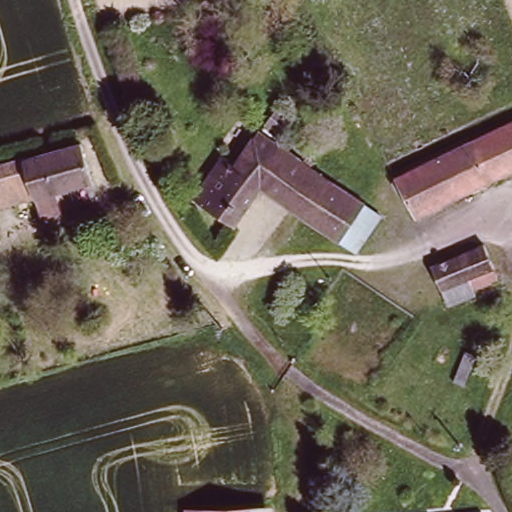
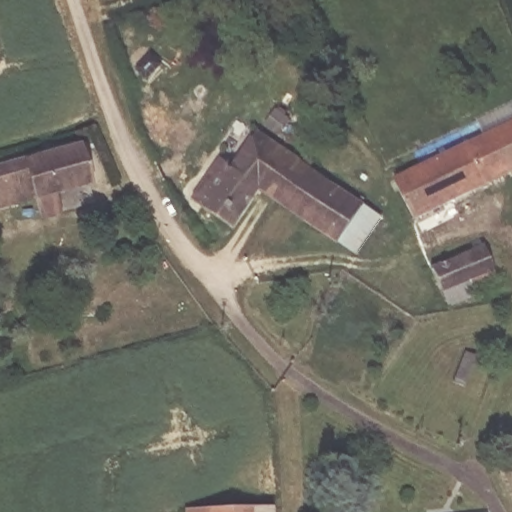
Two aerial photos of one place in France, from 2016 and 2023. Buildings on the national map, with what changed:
unchanged [(414,222),(391,176),(512,119),(512,174),(414,222)]
unchanged [(262,180),(243,209),(202,185),(220,154),(235,162),(255,132),(281,149),(262,180)]
unchanged [(61,211),(41,216),(36,197),(0,206),(0,165),(81,143),(92,182),(56,192),(61,211)]
unchanged [(401,227),(353,243),(262,180),(281,149),(401,227)]
unchanged [(226,237),(185,214),(202,185),(243,209),(226,237)]
unchanged [(445,310),(439,292),(428,264),(488,240),(504,284),(470,296),(471,302),(445,310)]
unchanged [(272,512),(184,512),(184,511),(251,507),(272,506),(272,512)]

